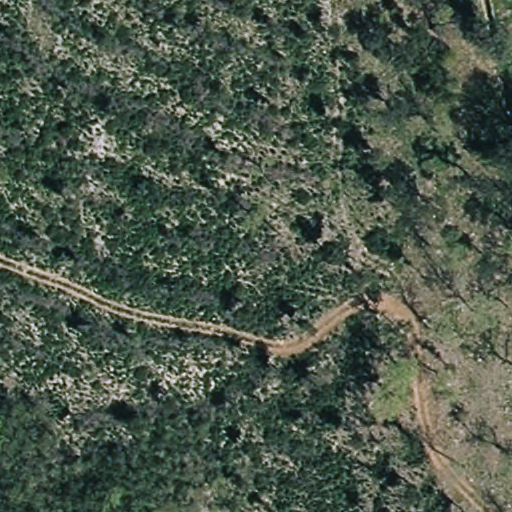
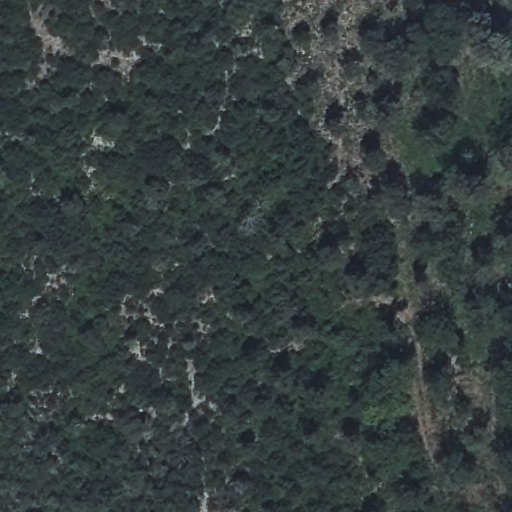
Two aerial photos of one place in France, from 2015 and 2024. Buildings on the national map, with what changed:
unchanged [(489,0),(508,0),(489,1),(489,0)]

